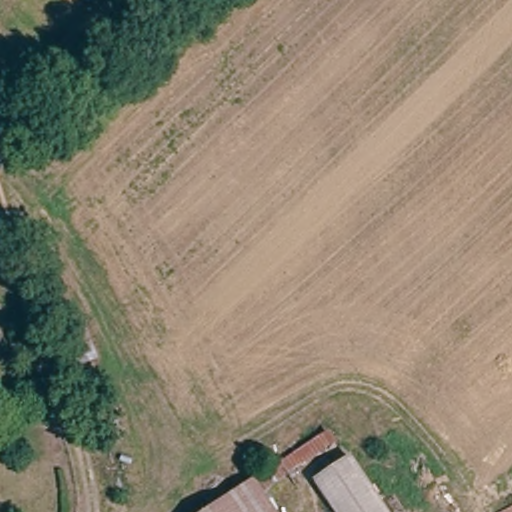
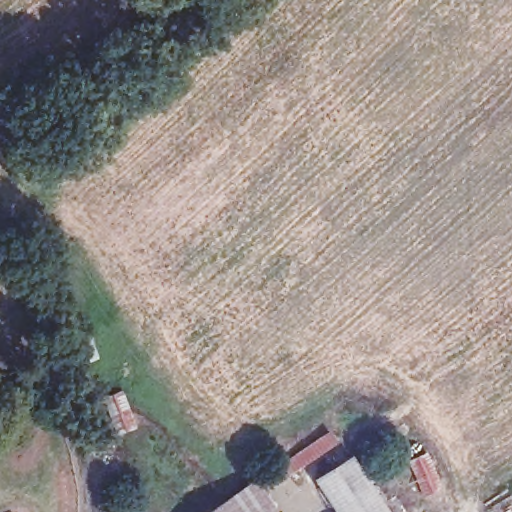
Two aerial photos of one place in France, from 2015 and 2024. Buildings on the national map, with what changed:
unchanged [(345,459),(388,512),(333,512),(311,485),(345,459)]
unchanged [(244,481),(267,512),(238,512),(225,494),(244,481)]
unchanged [(238,512),(199,512),(225,494),(238,512)]

